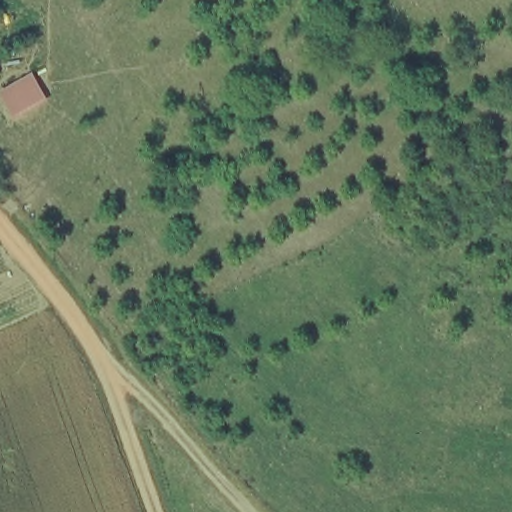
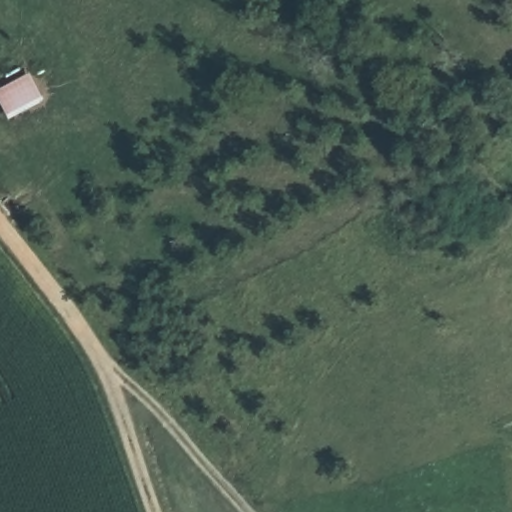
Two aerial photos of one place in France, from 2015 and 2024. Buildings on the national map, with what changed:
unchanged [(47,101),(14,120),(0,93),(0,92),(34,72),(47,101)]

